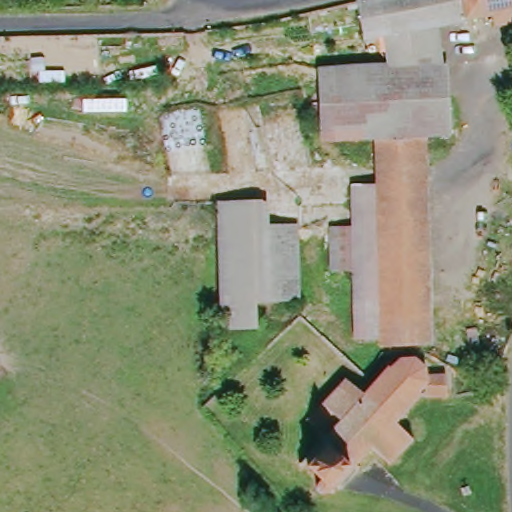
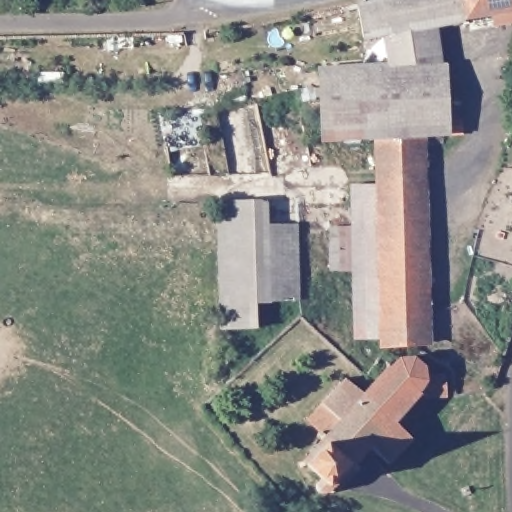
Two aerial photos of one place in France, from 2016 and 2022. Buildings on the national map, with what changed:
unchanged [(459,24),(431,26),(379,31),(357,33),(352,0),(512,0),(512,13),(459,24)]
unchanged [(379,31),(431,26),(437,60),(380,64),(379,31)]
unchanged [(315,66),(330,65),(380,64),(437,60),(443,60),(445,132),(419,134),(373,137),(319,140),(318,116),(315,66)]
unchanged [(220,164),(210,106),(253,102),(266,160),(220,164)]
unchanged [(419,134),(422,343),(376,345),(376,339),(374,185),(373,137),(419,134)]
unchanged [(350,340),(348,270),(325,270),(325,229),(347,229),(347,186),(374,185),(376,339),(350,340)]
unchanged [(262,303),(262,329),(218,331),(219,200),(260,200),(262,303)]
unchanged [(270,200),(270,224),(300,225),(302,300),(262,303),(260,200),(270,200)]
unchanged [(340,376),(358,394),(383,367),(389,365),(405,360),(417,358),(418,359),(427,366),(427,380),(445,380),(445,400),(414,397),(400,413),(402,416),(394,425),(410,440),(385,466),(367,449),(353,464),(360,470),(355,475),(350,471),(331,490),(332,495),(325,495),(325,491),(299,467),(295,467),(295,461),(298,461),(319,438),(302,420),(340,376)]

